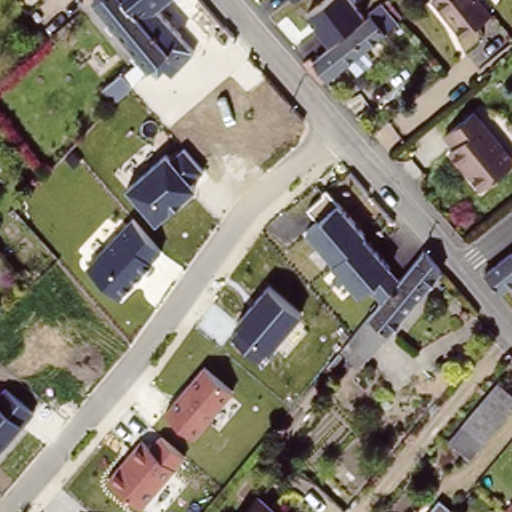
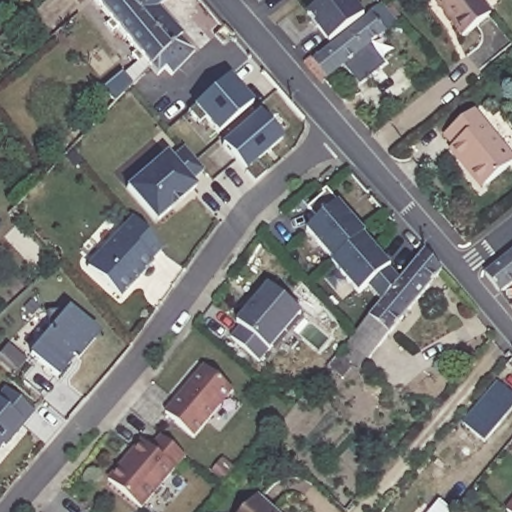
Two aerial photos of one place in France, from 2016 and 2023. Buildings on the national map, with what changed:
unchanged [(150,70),(149,69),(114,105),(101,89),(119,73),(127,82),(130,70),(141,60),(93,3),(96,0),(121,0),(166,50),(179,38),(192,53),(170,75),(163,68),(156,76),(150,70)]
unchanged [(158,8),(181,36),(179,38),(166,50),(121,0),(167,0),(158,8)]
unchanged [(306,14),(325,0),(354,0),(366,15),(329,46),(306,14)]
unchanged [(464,36),(433,0),(478,0),(490,15),(464,36)]
unchanged [(314,58),(377,7),(390,23),(384,28),(384,30),(323,82),(321,80),(304,59),(311,54),(314,58)]
new [(217,134),(203,117),(199,122),(189,111),(195,106),(229,74),(253,103),(217,134)]
unchanged [(354,110),(346,101),(363,85),(371,94),(354,110)]
new [(246,171),(220,144),(259,113),(283,139),(256,162),(265,172),(254,181),(246,171)]
unchanged [(457,164),(446,151),(449,147),(441,136),(469,113),(509,163),(481,187),(478,190),(457,164)]
unchanged [(166,153),(171,158),(184,147),(203,169),(191,181),(198,187),(156,224),(124,187),(166,153)]
unchanged [(323,195),(321,191),(327,188),(367,234),(364,237),(401,280),(382,302),(370,288),(359,296),(332,263),(333,262),(306,230),(318,221),(306,209),(323,195)]
unchanged [(131,217),(162,250),(120,299),(85,266),(131,217)]
unchanged [(441,273),(369,360),(367,358),(359,369),(339,354),(424,252),(441,273)]
unchanged [(491,270),(512,252),(512,284),(506,289),(491,270)]
unchanged [(235,323),(269,285),(303,314),(269,352),(266,352),(259,361),(231,338),(239,327),(235,323)]
new [(78,361),(74,358),(58,380),(41,398),(20,380),(34,359),(28,354),(47,332),(46,312),(68,308),(98,335),(78,361)]
unchanged [(235,389),(195,439),(164,416),(205,363),(235,389)]
unchanged [(472,437),(454,421),(490,378),(509,394),(472,437)]
unchanged [(4,389),(35,412),(0,452),(0,394),(4,389)]
unchanged [(151,443),(161,432),(186,453),(141,510),(105,481),(141,435),(151,443)]
unchanged [(270,512),(241,512),(253,497),(270,512)]
unchanged [(512,512),(505,512),(512,503),(512,512)]
unchanged [(444,512),(435,512),(439,507),(444,512)]

